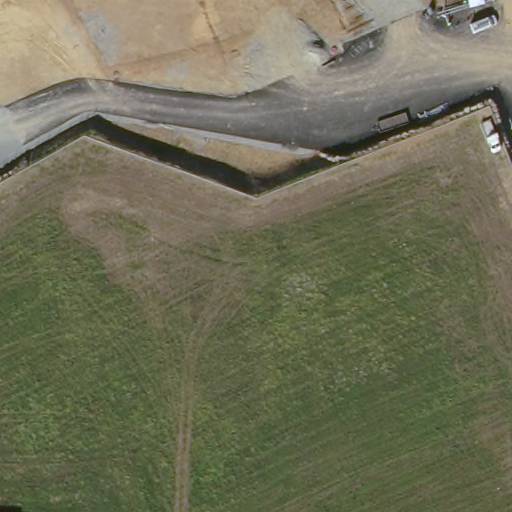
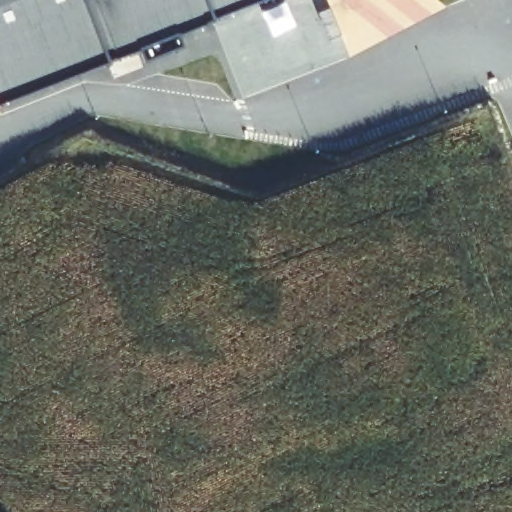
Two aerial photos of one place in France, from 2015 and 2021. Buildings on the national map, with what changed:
new [(176,37),(182,49),(143,63),(138,50),(0,101),(0,0),(268,0),(176,37)]
new [(290,8),(311,0),(314,0),(335,55),(312,63),(290,8)]

